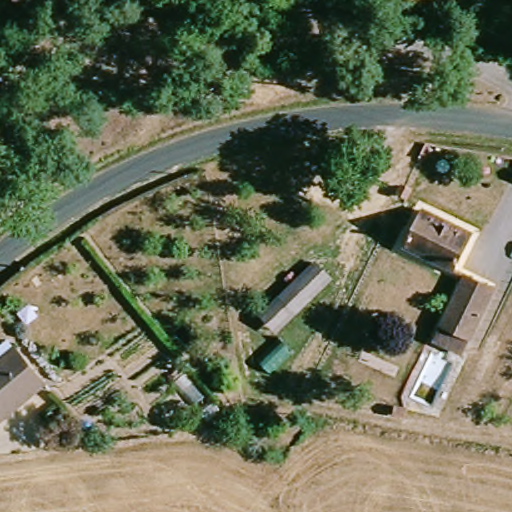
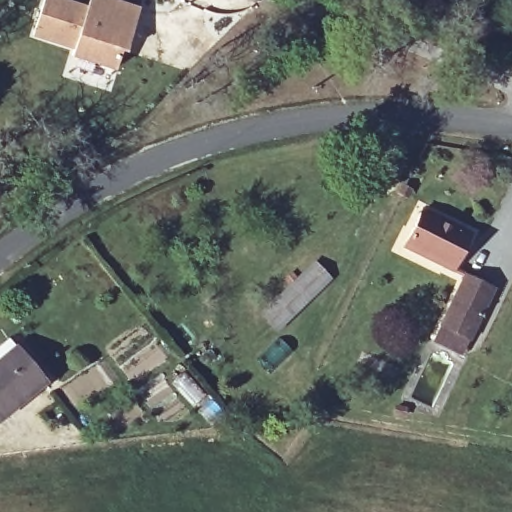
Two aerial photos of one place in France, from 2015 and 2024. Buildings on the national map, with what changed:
new [(141,7),(127,56),(121,54),(115,74),(71,61),(73,48),(32,36),(43,0),(76,0),(87,3),(89,0),(119,0),(141,7)]
unchanged [(431,206),(481,229),(463,269),(413,247),(431,206)]
unchanged [(326,258),(344,279),(287,331),(270,312),(326,258)]
unchanged [(445,340),(453,323),(476,277),(503,291),(481,337),(473,353),(445,340)]
unchanged [(0,402),(0,368),(26,346),(51,381),(9,415),(0,402)]

